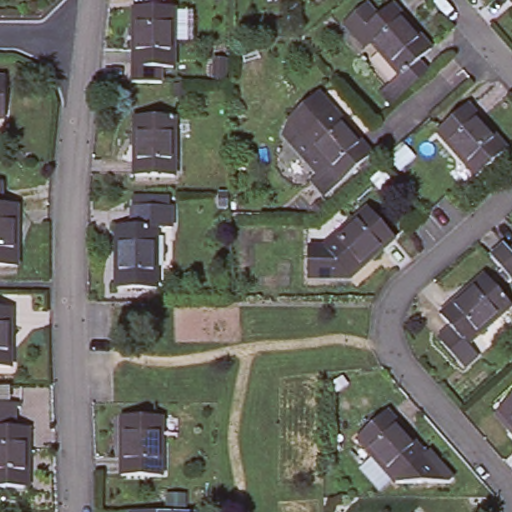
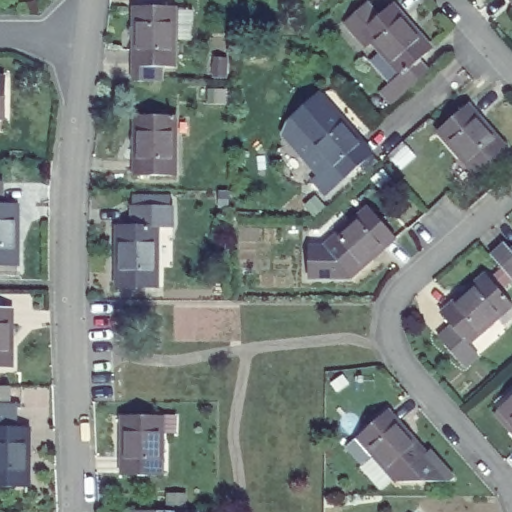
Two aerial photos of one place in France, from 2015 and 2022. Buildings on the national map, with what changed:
unchanged [(373,39),(367,43),(344,18),(364,1),(376,15),(393,2),(432,46),(413,62),(424,76),(395,101),(384,87),(402,72),(373,39)]
unchanged [(144,80),(129,80),(129,64),(131,64),(132,4),(172,5),(172,6),(188,6),(187,37),(171,37),(171,64),(159,64),(159,80),(144,80)]
unchanged [(8,116),(0,116),(0,77),(9,77),(8,116)]
unchanged [(325,89),(376,150),(328,194),(315,178),(321,170),(275,132),(325,89)]
unchanged [(469,102),(507,147),(477,172),(439,128),(469,102)]
unchanged [(178,114),(178,173),(137,173),(137,114),(178,114)]
unchanged [(133,226),(133,205),(133,191),(174,190),(174,204),(174,226),(159,226),(158,284),(119,283),(118,226),(133,226)]
unchanged [(331,239),(369,200),(398,233),(359,275),(311,278),(311,242),(331,239)]
unchanged [(21,205),(20,264),(0,263),(0,205),(21,205)]
unchanged [(512,246),(512,275),(492,252),(507,240),(512,246)]
unchanged [(469,350),(449,325),(463,313),(452,300),(496,261),(512,280),(512,301),(478,331),(484,337),(488,342),(474,354),(469,350)]
unchanged [(17,366),(0,366),(0,307),(18,307),(17,366)]
unchanged [(512,426),(497,408),(512,396),(512,426)]
unchanged [(28,485),(0,485),(0,405),(14,405),(13,426),(28,427),(28,485)]
unchanged [(163,410),(163,470),(123,470),(123,410),(163,410)]
unchanged [(361,470),(373,458),(356,440),(387,413),(427,458),(431,455),(455,483),(451,486),(396,485),(396,484),(396,483),(394,480),(381,492),(361,470)]
unchanged [(128,505),(163,505),(162,512),(128,512),(128,505)]
unchanged [(182,510),(182,512),(166,512),(166,510),(182,510)]

